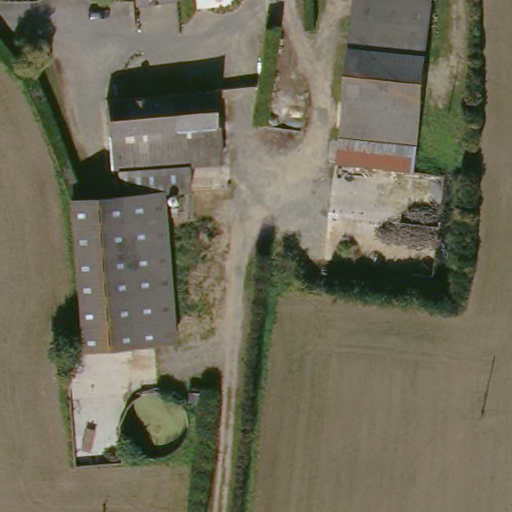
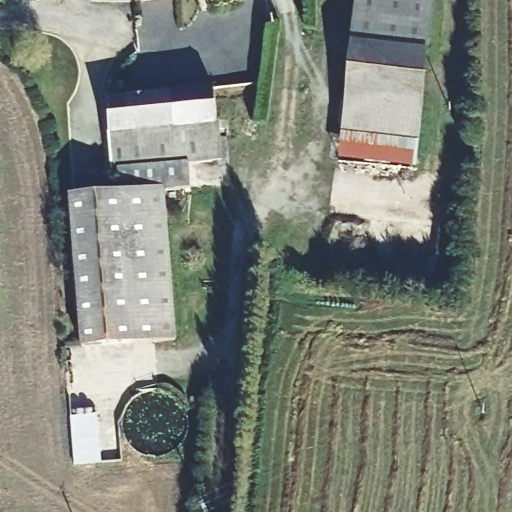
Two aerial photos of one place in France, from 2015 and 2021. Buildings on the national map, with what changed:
unchanged [(342,154),(361,0),(436,0),(419,161),(342,154)]
unchanged [(82,340),(72,188),(122,183),(119,132),(115,95),(219,85),(221,116),(224,156),(191,159),(194,183),(169,189),(180,332),(82,340)]

